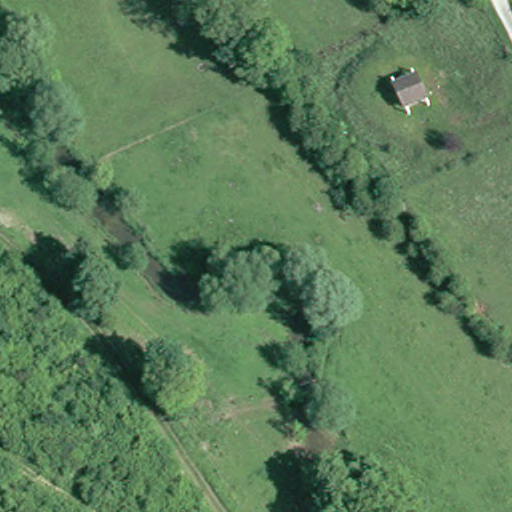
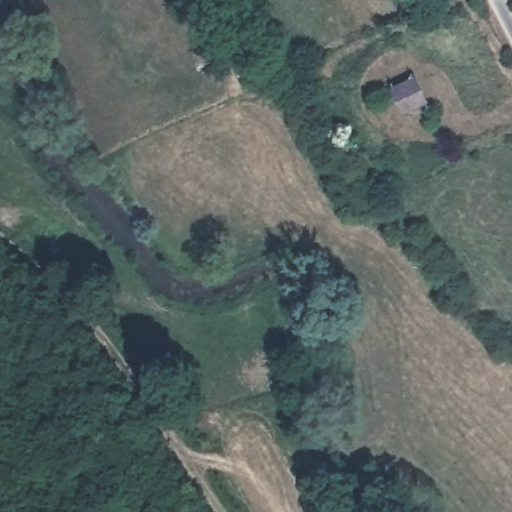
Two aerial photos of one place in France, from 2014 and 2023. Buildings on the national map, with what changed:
unchanged [(430,98),(407,108),(399,85),(421,75),(430,98)]

